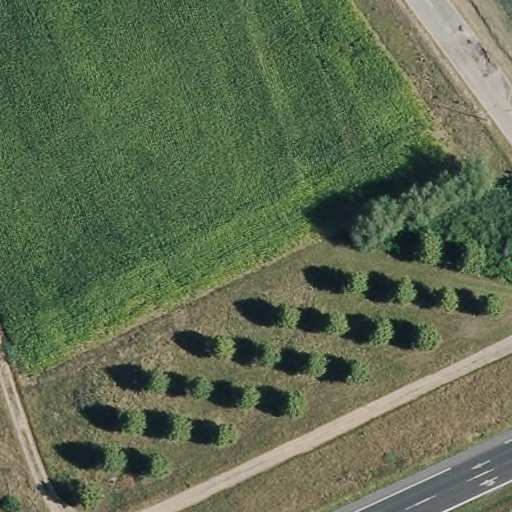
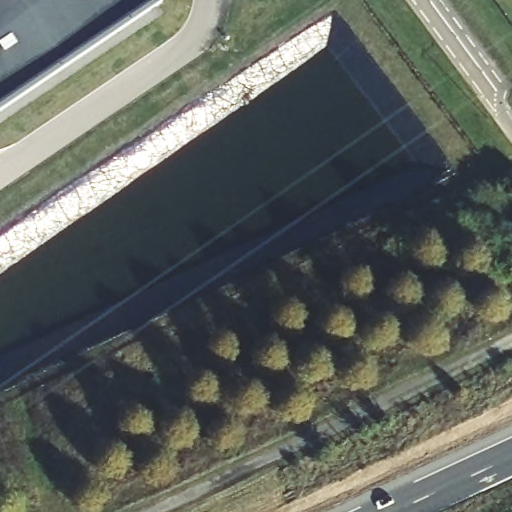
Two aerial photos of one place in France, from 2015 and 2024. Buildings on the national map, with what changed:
new [(0,104),(0,0),(152,0),(0,104)]

